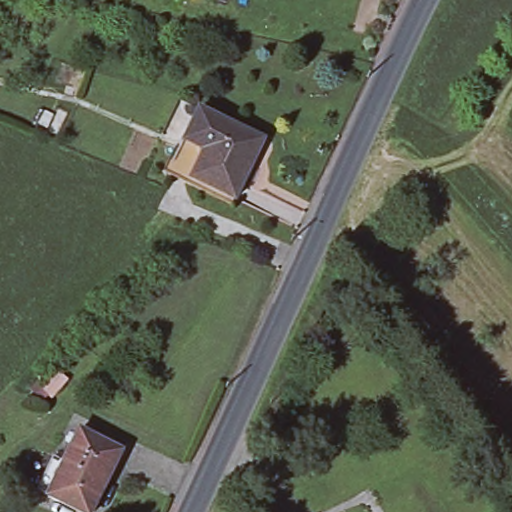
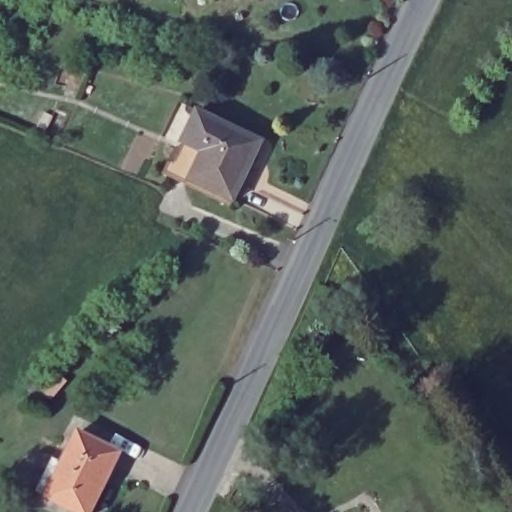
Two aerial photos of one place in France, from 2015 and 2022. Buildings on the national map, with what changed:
unchanged [(233,204),(169,173),(171,168),(184,142),(200,110),(265,140),(252,164),(247,174),(235,200),(233,204)]
unchanged [(63,463),(79,430),(121,451),(92,512),(81,512),(47,496),(36,491),(52,458),(63,463)]

